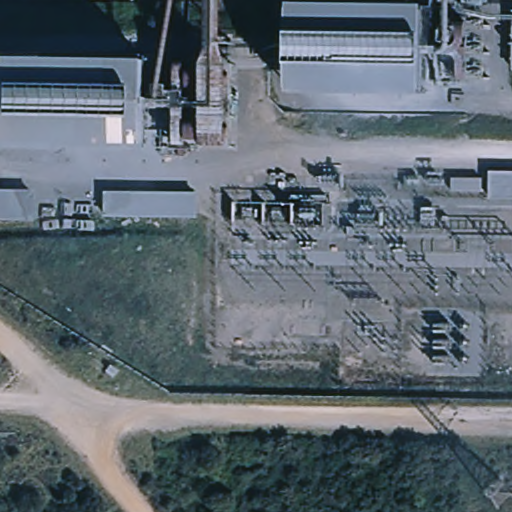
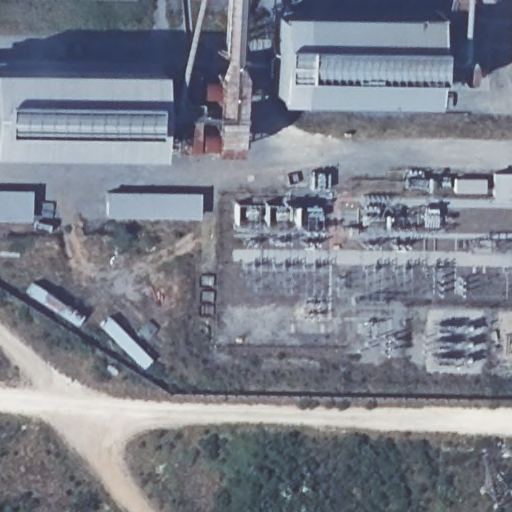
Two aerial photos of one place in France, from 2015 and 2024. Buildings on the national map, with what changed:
unchanged [(426,93),(293,91),(294,4),(427,7),(426,93)]
unchanged [(151,144),(0,142),(0,60),(151,61),(151,144)]
unchanged [(488,171),(512,171),(512,197),(488,197),(488,171)]
unchanged [(0,218),(0,191),(32,191),(31,219),(0,218)]
unchanged [(110,192),(200,193),(201,216),(110,215),(110,192)]

